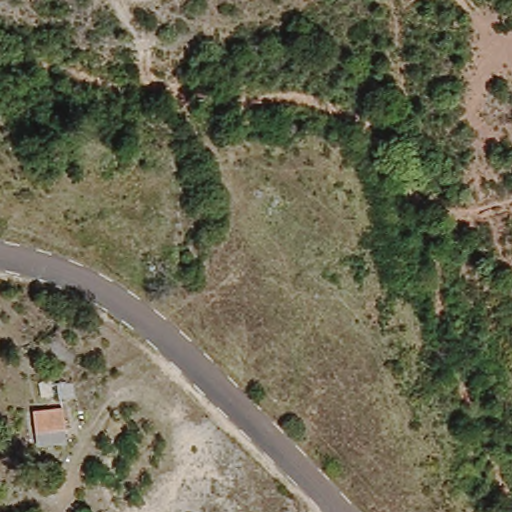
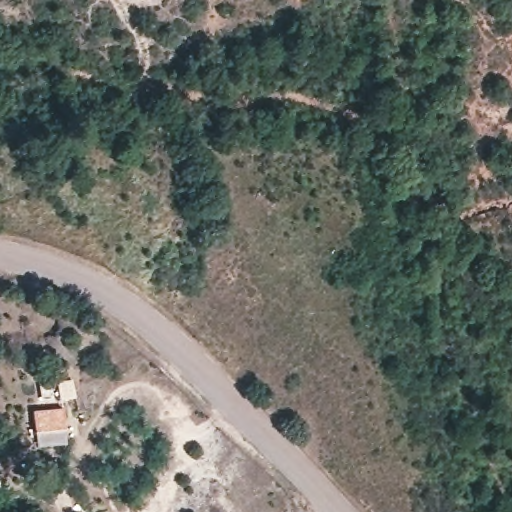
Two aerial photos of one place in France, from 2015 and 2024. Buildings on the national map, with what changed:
unchanged [(63,438),(30,438),(25,413),(62,409),(63,438)]

